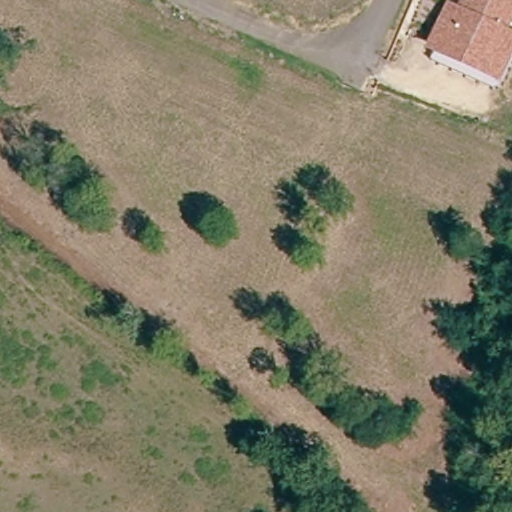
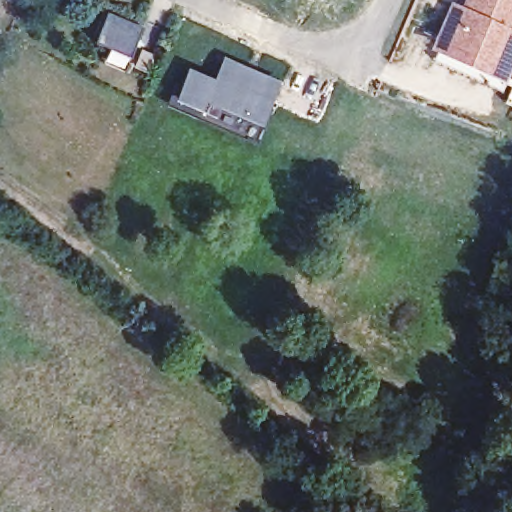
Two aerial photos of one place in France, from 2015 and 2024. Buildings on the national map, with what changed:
unchanged [(448,0),(449,0),(461,6),(463,0),(512,0),(512,28),(511,30),(512,31),(512,61),(503,82),(428,45),(448,0)]
new [(93,42),(105,11),(142,25),(129,57),(93,42)]
new [(185,65),(210,76),(222,55),(282,80),(260,130),(220,113),(217,119),(170,99),(185,65)]

